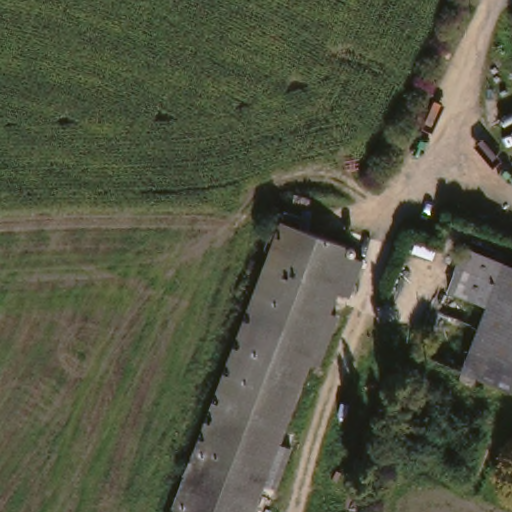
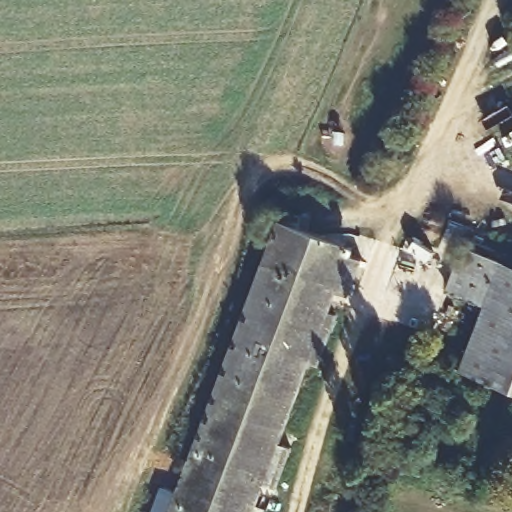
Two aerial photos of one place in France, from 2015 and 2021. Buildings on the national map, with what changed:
unchanged [(367,247),(268,512),(175,512),(286,215),(367,247)]
unchanged [(432,349),(472,243),(511,257),(471,364),(432,349)]
unchanged [(512,257),(512,380),(471,364),(511,257),(512,257)]

